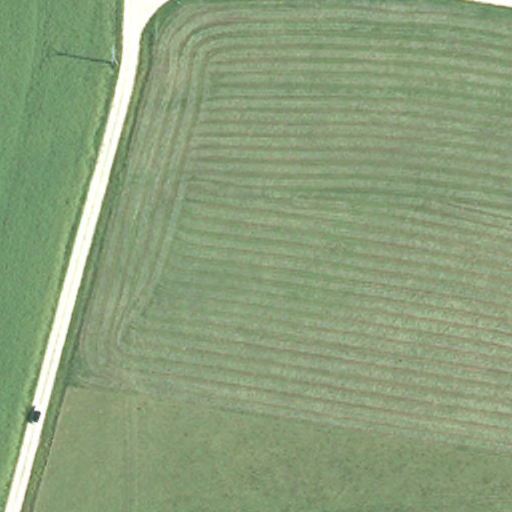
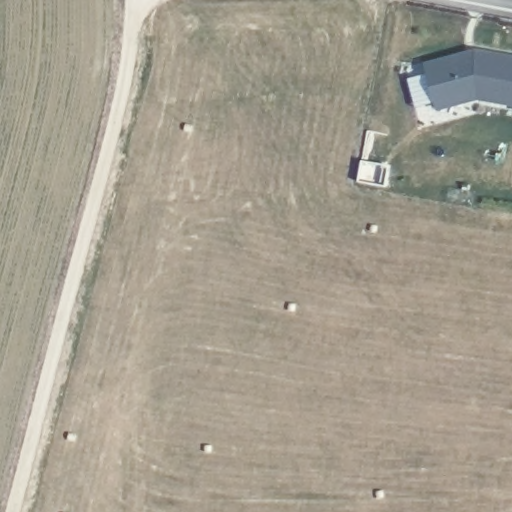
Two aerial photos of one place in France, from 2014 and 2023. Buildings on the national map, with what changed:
new [(512,52),(512,106),(476,101),(437,112),(423,62),(480,48),(512,52)]

